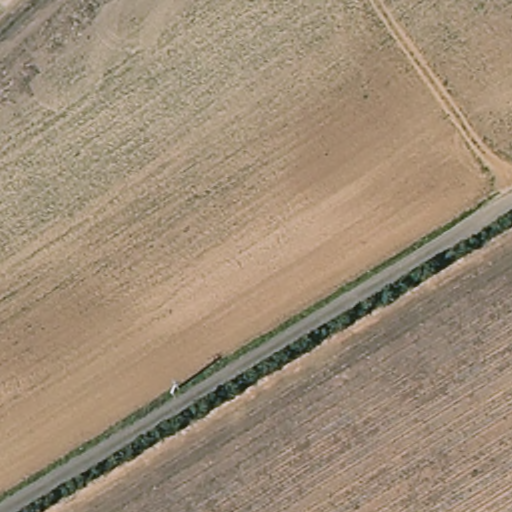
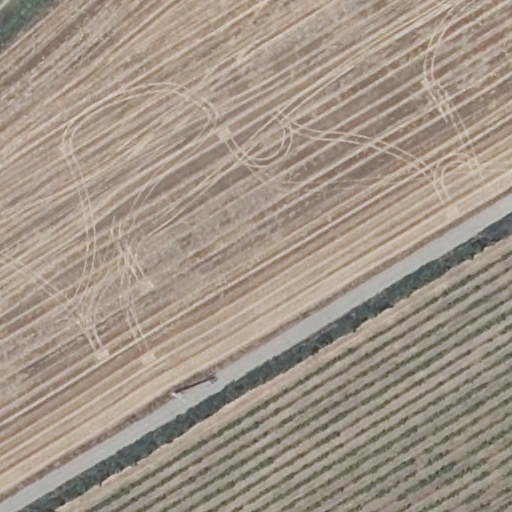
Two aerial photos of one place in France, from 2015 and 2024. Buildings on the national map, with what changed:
[]

